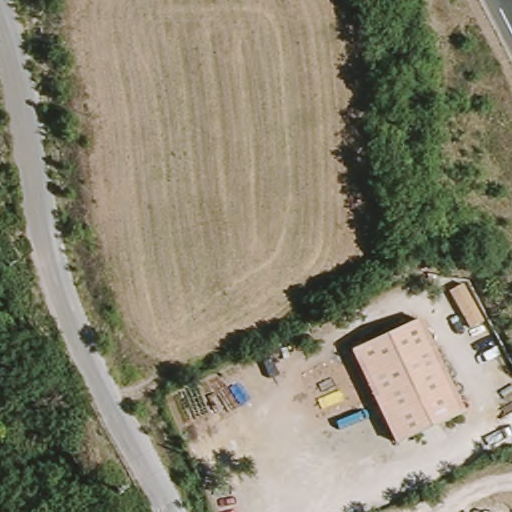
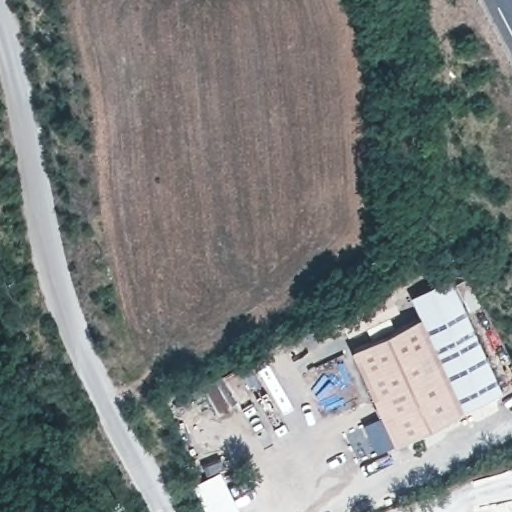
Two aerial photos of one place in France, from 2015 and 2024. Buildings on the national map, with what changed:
new [(463,412),(411,298),(450,280),(503,395),(463,412)]
unchanged [(412,317),(459,411),(393,445),(345,350),(412,317)]
new [(220,473),(240,512),(209,512),(195,487),(220,473)]

